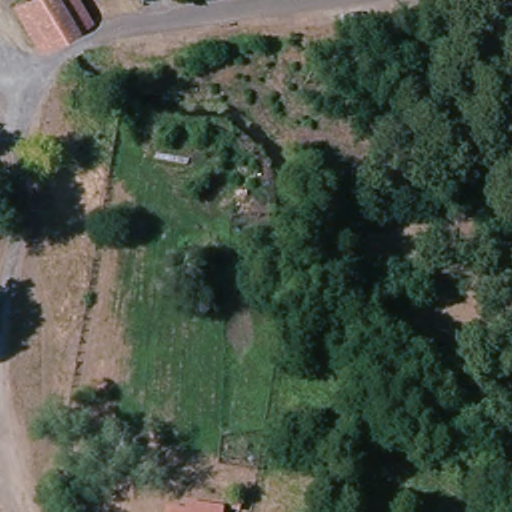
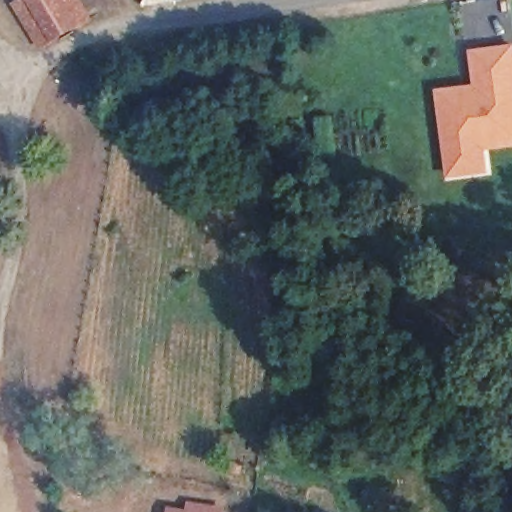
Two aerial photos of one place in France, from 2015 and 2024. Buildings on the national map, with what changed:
unchanged [(68,0),(84,28),(36,56),(11,14),(27,3),(34,0),(68,0)]
new [(470,51),(512,44),(512,147),(487,149),(490,175),(447,179),(436,89),(474,85),(470,51)]
unchanged [(195,508),(217,512),(194,512),(195,508)]

